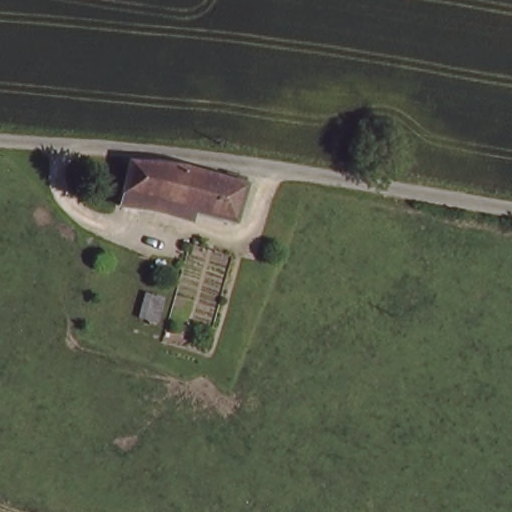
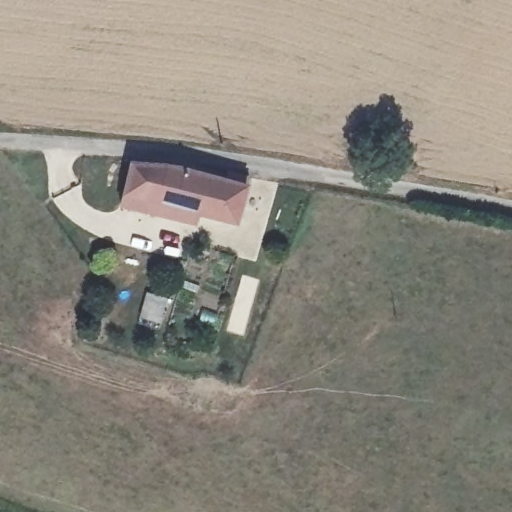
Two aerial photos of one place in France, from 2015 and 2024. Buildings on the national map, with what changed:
unchanged [(157,199),(155,212),(124,209),(125,165),(127,165),(163,165),(157,199)]
unchanged [(240,217),(157,199),(163,165),(185,166),(197,166),(230,176),(231,170),(252,174),(240,217)]
unchanged [(147,291),(165,297),(159,323),(139,318),(147,291)]

